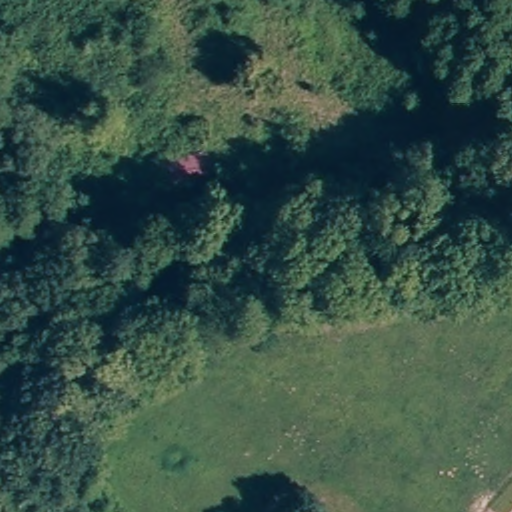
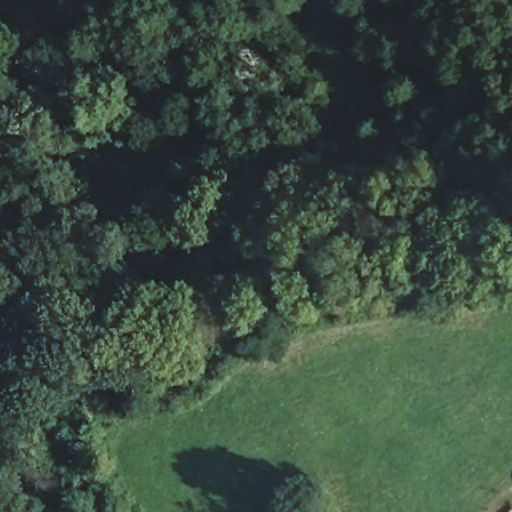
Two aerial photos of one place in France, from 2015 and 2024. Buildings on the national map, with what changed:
unchanged [(166,161),(215,148),(224,178),(175,191),(166,161)]

